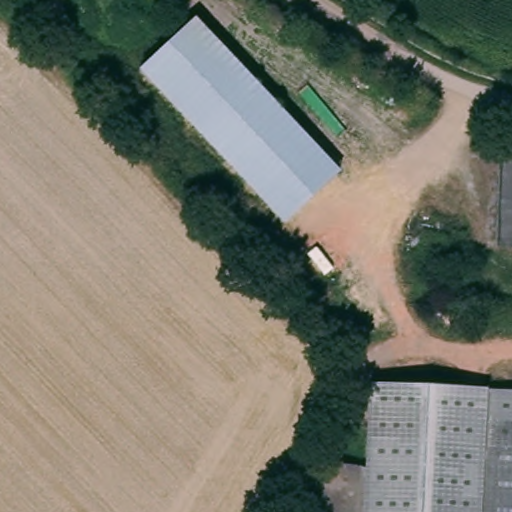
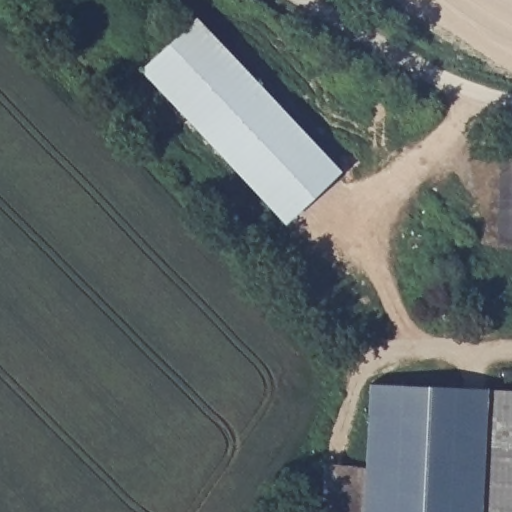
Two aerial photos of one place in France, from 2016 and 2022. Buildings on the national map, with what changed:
unchanged [(199,13),(334,177),(276,224),(140,62),(199,13)]
unchanged [(368,512),(370,468),(371,383),(486,392),(482,512),(368,512)]
unchanged [(512,512),(482,512),(486,392),(512,392),(512,512)]
unchanged [(370,468),(368,512),(317,512),(318,466),(370,468)]

